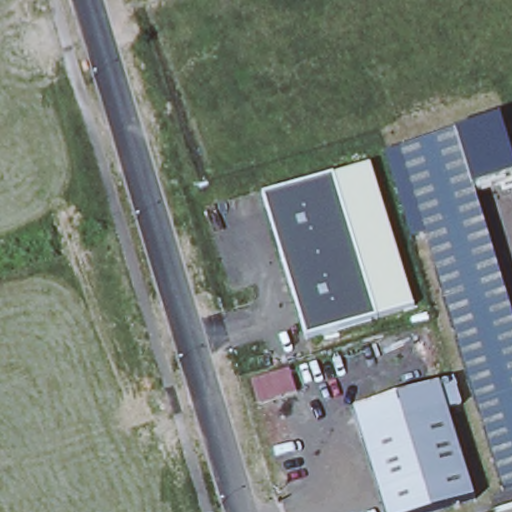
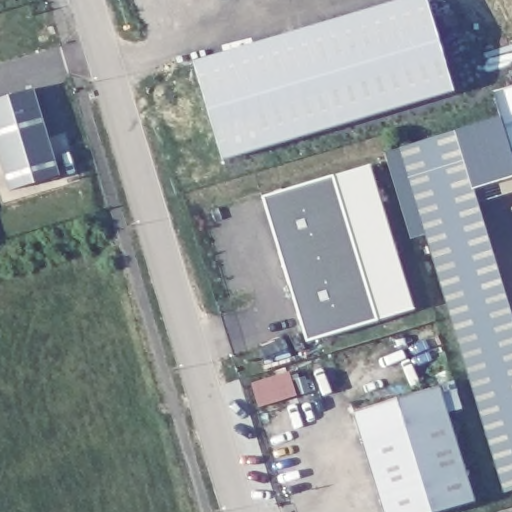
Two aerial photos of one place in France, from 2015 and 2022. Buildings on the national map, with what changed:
new [(425,0),(452,90),(222,159),(192,61),(396,0),(425,0)]
new [(32,88),(58,175),(9,190),(0,160),(0,98),(32,88)]
new [(492,93),(512,88),(512,157),(500,119),(492,93)]
unchanged [(512,178),(470,190),(512,318),(512,489),(505,491),(401,149),(500,119),(512,157),(512,178)]
new [(411,238),(384,153),(401,149),(427,234),(411,238)]
new [(372,164),(413,310),(376,319),(332,174),(372,164)]
unchanged [(261,195),(332,174),(376,319),(305,341),(261,195)]
new [(288,371),(295,394),(257,406),(250,382),(288,371)]
unchanged [(476,503),(446,512),(387,512),(356,415),(441,388),(476,503)]

